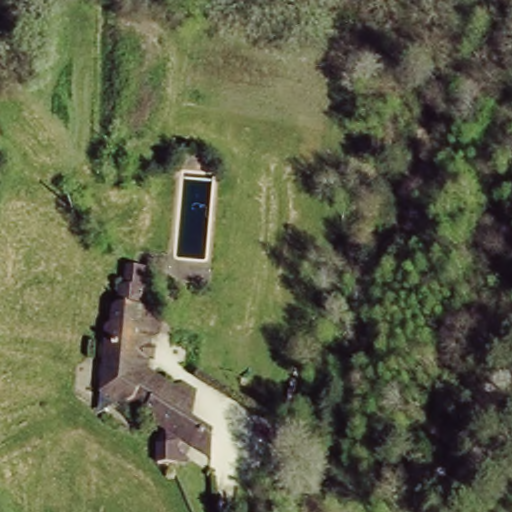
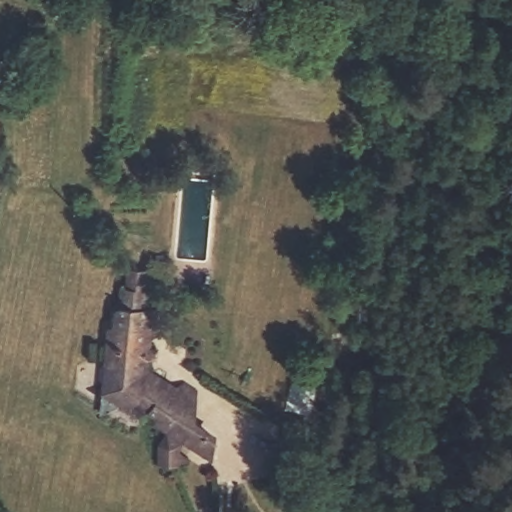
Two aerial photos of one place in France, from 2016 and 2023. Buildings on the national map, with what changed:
unchanged [(105,324),(111,324),(111,305),(118,306),(119,285),(125,266),(148,270),(145,307),(160,308),(158,336),(150,336),(149,368),(171,384),(182,378),(198,389),(193,421),(217,438),(212,465),(150,428),(152,418),(131,403),(125,412),(98,391),(105,324)]

